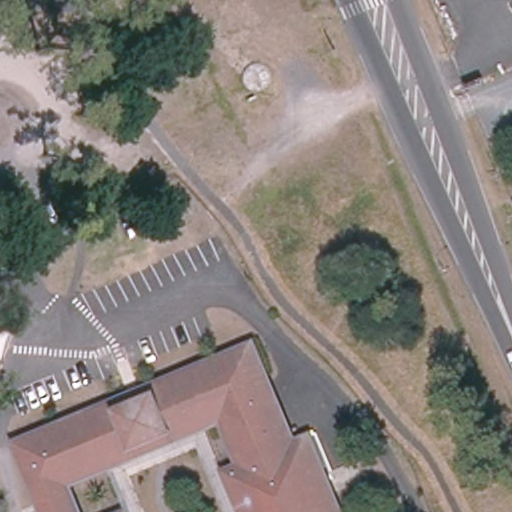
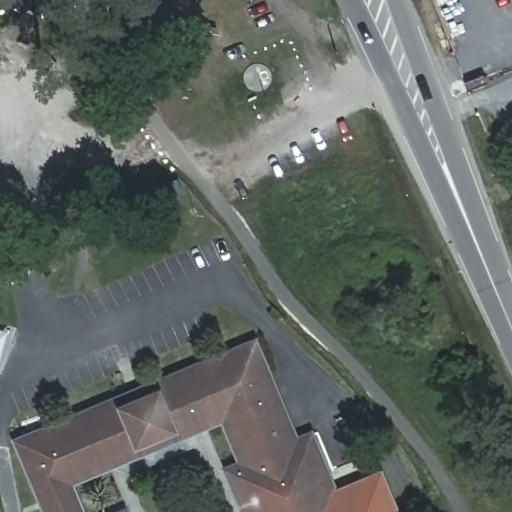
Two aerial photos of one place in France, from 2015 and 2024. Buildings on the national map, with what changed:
unchanged [(0,355),(0,326),(8,329),(0,355)]
unchanged [(297,434),(315,427),(350,512),(241,512),(223,467),(236,461),(222,425),(76,485),(87,512),(42,512),(15,438),(258,338),(297,434)]
new [(382,470),(400,512),(350,512),(339,487),(382,470)]
unchanged [(133,512),(120,512),(131,508),(133,512)]

